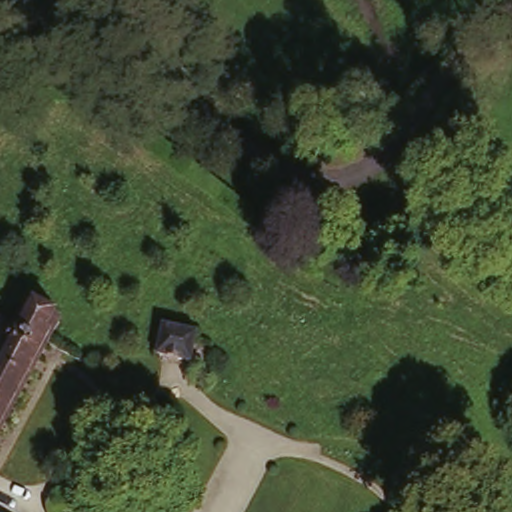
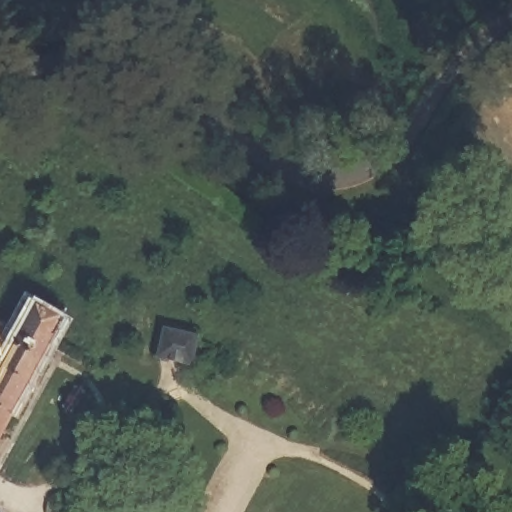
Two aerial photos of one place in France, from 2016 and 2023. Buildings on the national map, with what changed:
unchanged [(59,324),(0,433),(0,360),(30,307),(59,324)]
unchanged [(194,370),(166,362),(157,360),(164,334),(200,342),(194,370)]

